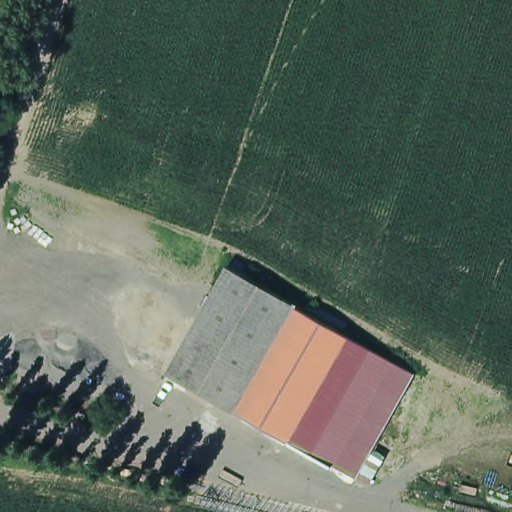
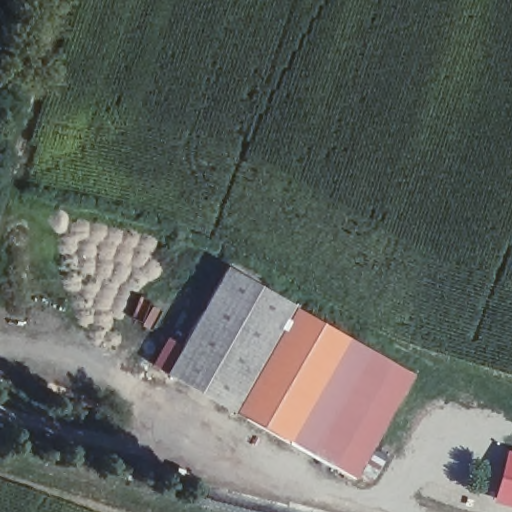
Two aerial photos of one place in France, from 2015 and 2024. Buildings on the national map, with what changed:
unchanged [(165,378),(225,271),(290,310),(231,415),(165,378)]
unchanged [(413,374),(362,485),(231,415),(290,310),(413,374)]
new [(512,501),(498,497),(510,450),(512,451),(512,501)]

